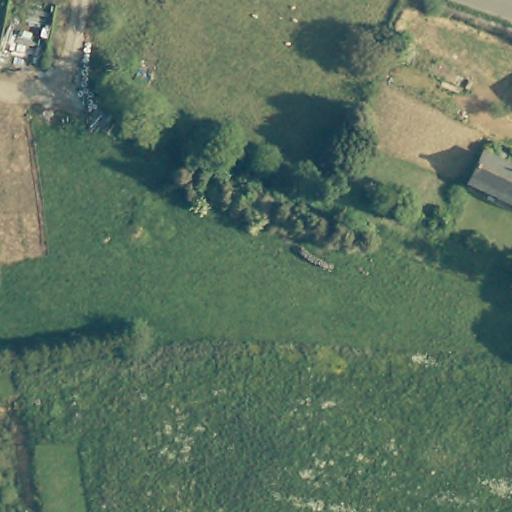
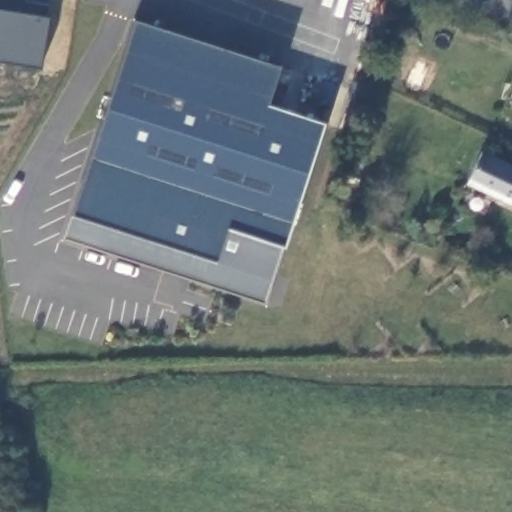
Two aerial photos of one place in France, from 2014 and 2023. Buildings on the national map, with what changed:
new [(283,246),(263,302),(62,237),(70,214),(133,19),(278,66),(266,104),(322,122),(283,246)]
unchanged [(360,123),(372,127),(369,139),(366,138),(365,142),(360,141),(361,137),(357,135),(360,123)]
unchanged [(482,151),(492,156),(512,166),(512,204),(467,183),(482,151)]

